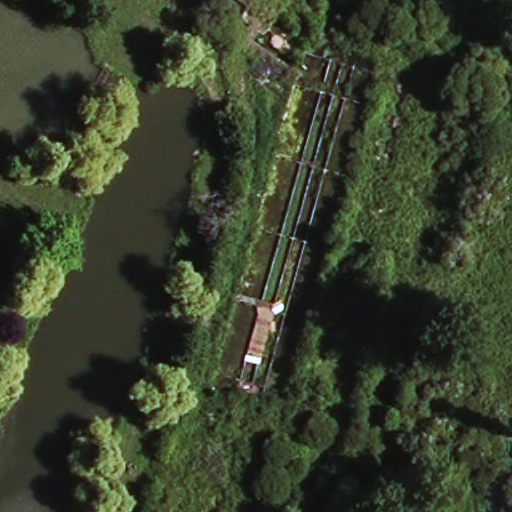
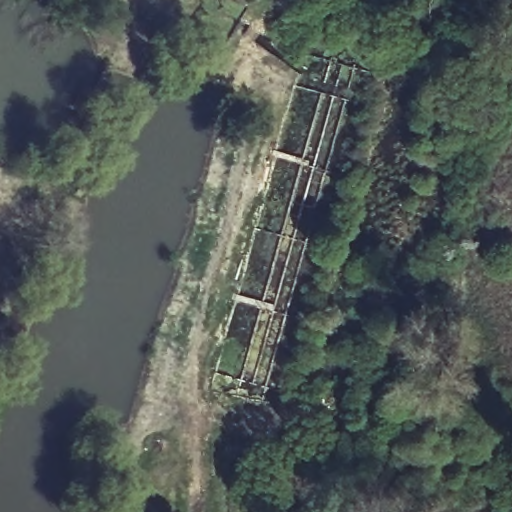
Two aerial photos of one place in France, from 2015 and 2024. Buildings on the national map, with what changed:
unchanged [(293,70),(280,88),(265,75),(268,71),(267,69),(271,63),(280,69),(285,62),(293,70)]

